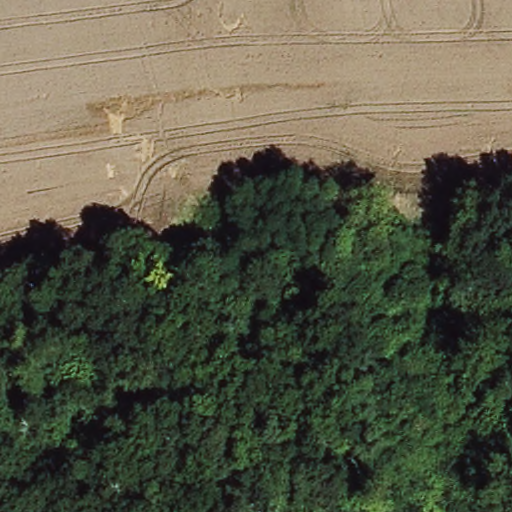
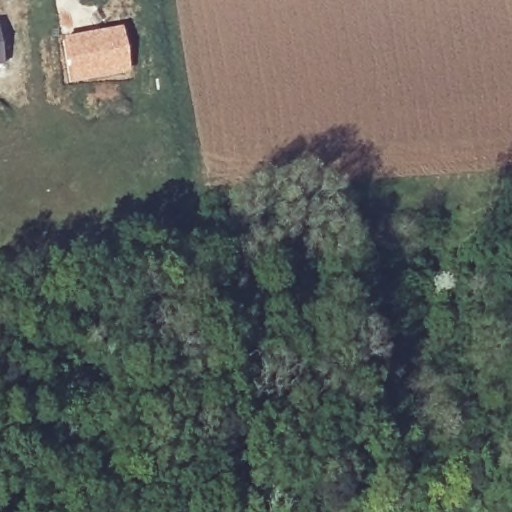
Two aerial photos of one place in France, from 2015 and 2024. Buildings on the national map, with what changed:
new [(120,27),(129,75),(67,84),(60,38),(120,27)]
new [(3,65),(0,66),(0,47),(3,65)]

